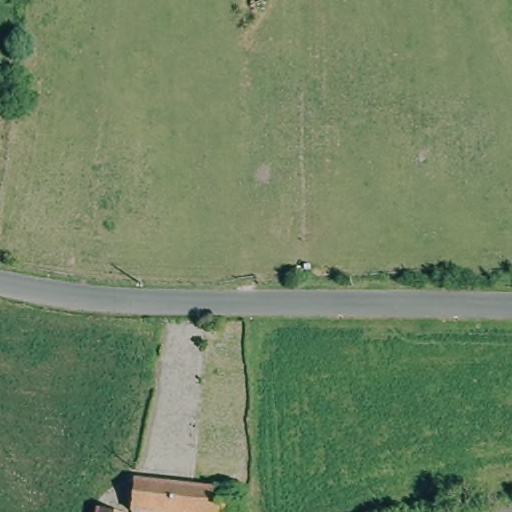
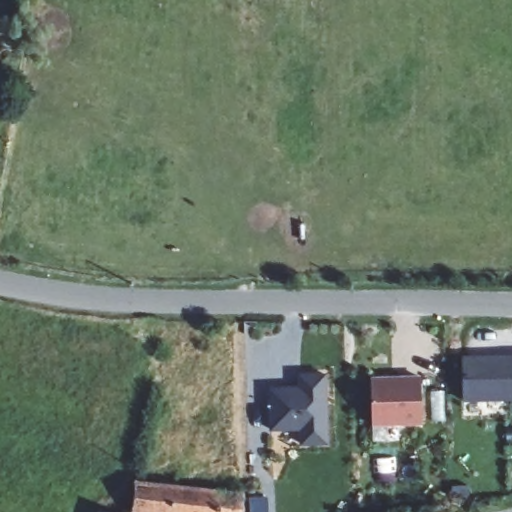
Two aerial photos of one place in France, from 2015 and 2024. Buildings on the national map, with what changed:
new [(512,399),(468,401),(467,358),(512,356),(512,399)]
new [(293,390),(293,392),(305,392),(305,377),(330,376),(333,445),(307,445),(306,430),(277,431),(275,391),(293,390)]
new [(397,379),(397,382),(407,381),(407,379),(426,378),(427,423),(378,425),(376,380),(397,379)]
unchanged [(241,497),(241,512),(134,512),(135,485),(150,487),(241,497)]
new [(270,512),(253,512),(253,502),(270,502),(270,512)]

